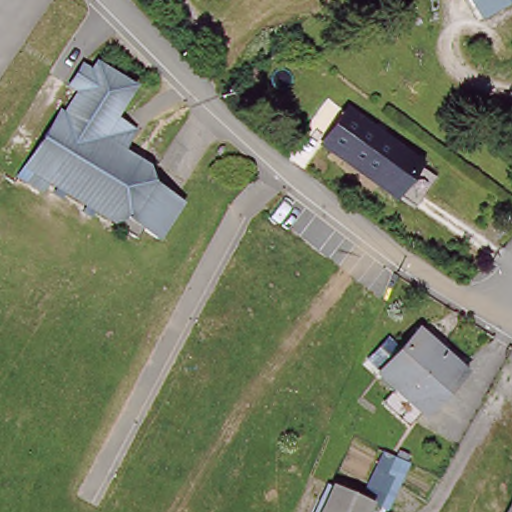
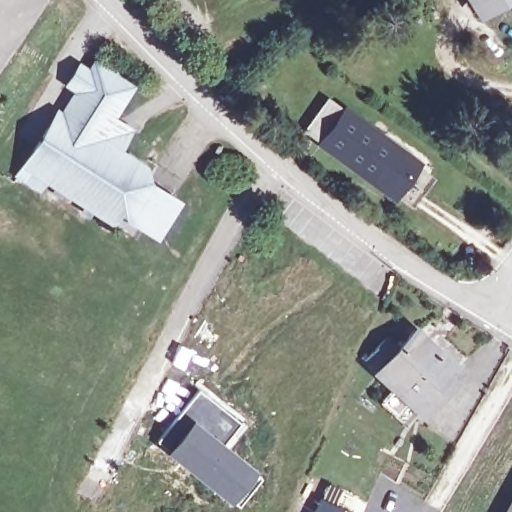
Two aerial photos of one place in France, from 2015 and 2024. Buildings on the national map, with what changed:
unchanged [(490,12),(477,20),(466,0),(512,0),(512,6),(493,17),(490,12)]
unchanged [(16,173),(23,163),(56,116),(63,120),(82,91),(70,82),(80,67),(91,74),(99,62),(137,88),(120,116),(143,132),(130,151),(150,167),(150,181),(181,202),(153,242),(122,220),(112,227),(47,180),(38,192),(16,173)]
unchanged [(406,203),(352,165),(335,152),(357,120),(375,132),(429,171),(406,203)]
unchanged [(425,412),(375,364),(395,344),(406,356),(424,336),(461,372),(462,376),(425,412)]
new [(179,344),(208,358),(205,367),(190,362),(186,370),(171,362),(179,344)]
new [(199,387),(246,423),(228,446),(261,477),(234,508),(155,443),(199,387)]
unchanged [(330,484),(360,493),(383,451),(401,460),(383,489),(376,503),(372,512),(317,512),(330,484)]

